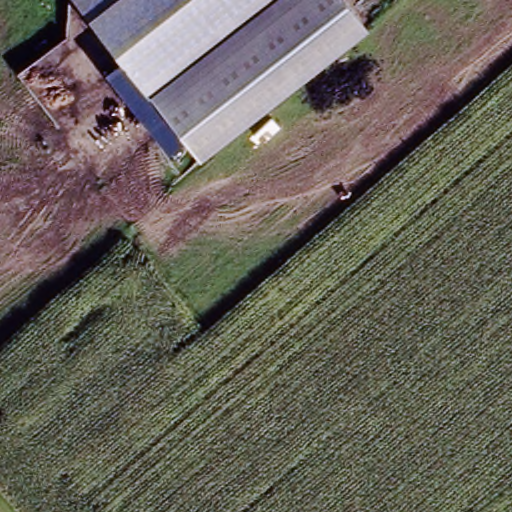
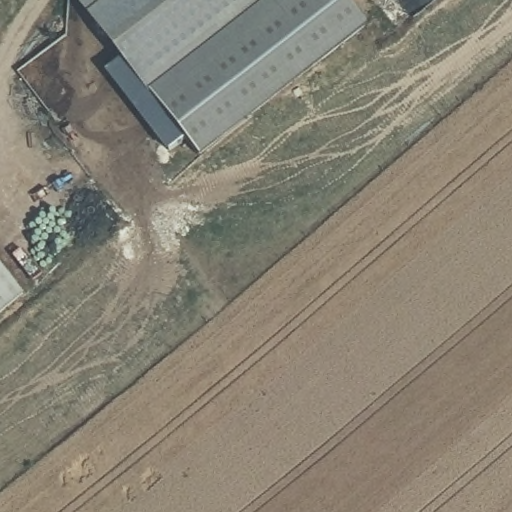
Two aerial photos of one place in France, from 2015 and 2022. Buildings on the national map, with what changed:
unchanged [(371,28),(201,158),(149,96),(72,0),(348,0),(371,28)]
new [(0,315),(0,266),(25,295),(0,315)]

